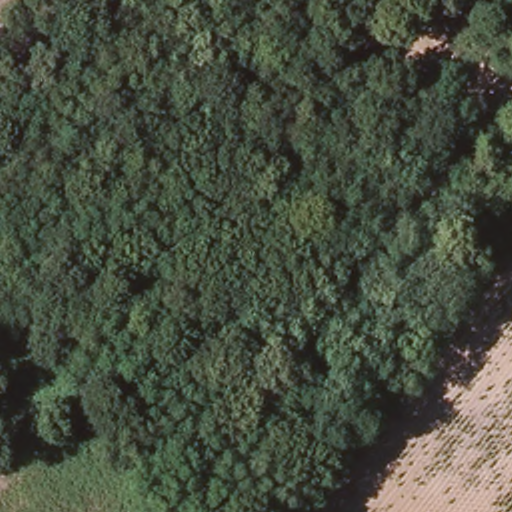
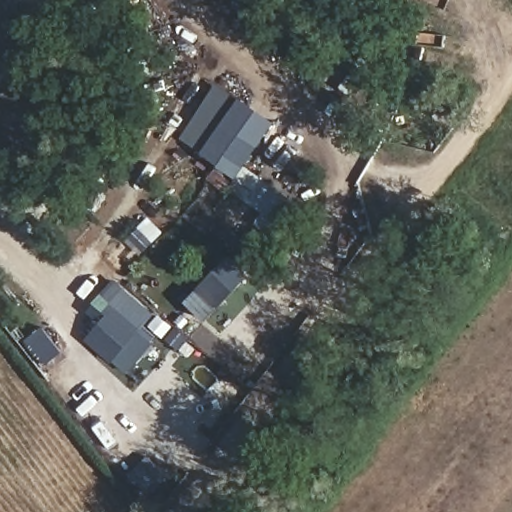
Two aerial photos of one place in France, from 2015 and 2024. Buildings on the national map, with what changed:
new [(226,193),(208,179),(217,165),(181,138),(219,82),(276,122),(245,166),(295,201),(280,222),(231,188),(226,193)]
demolished [(473,192),(465,186),(475,172),(483,179),(473,192)]
new [(126,240),(149,217),(163,232),(140,254),(126,240)]
new [(186,302),(229,257),(249,278),(205,322),(186,302)]
new [(171,327),(128,374),(89,338),(109,316),(95,303),(116,280),(171,327)]
new [(27,340),(44,327),(63,353),(46,366),(27,340)]

